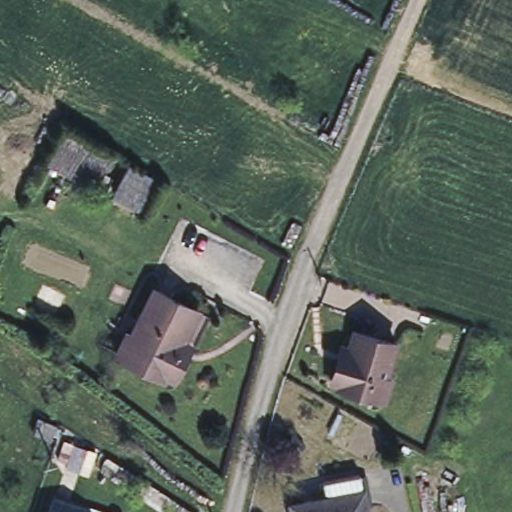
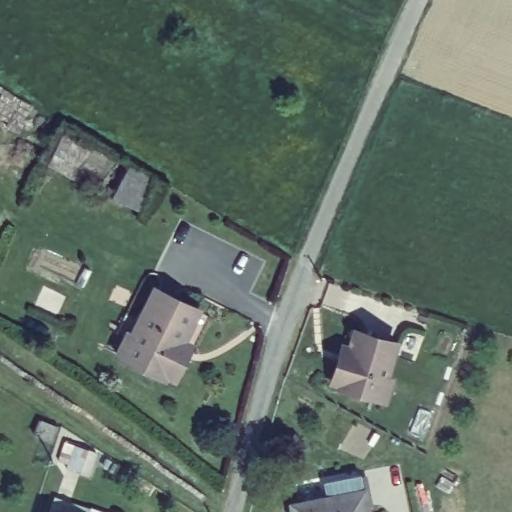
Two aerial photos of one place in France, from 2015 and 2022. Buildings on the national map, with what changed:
unchanged [(124,161),(102,199),(44,169),(62,129),(124,161)]
unchanged [(197,312),(182,343),(189,346),(172,380),(166,377),(165,380),(120,358),(154,290),(197,312)]
unchanged [(349,350),(354,333),(395,345),(384,382),(390,384),(385,402),(338,389),(339,386),(332,384),(342,348),(349,350)]
unchanged [(322,483),(359,476),(362,492),(366,512),(292,512),(291,506),(325,499),(322,483)]

